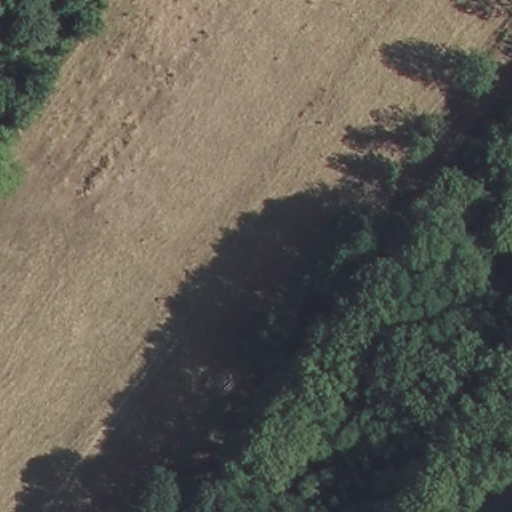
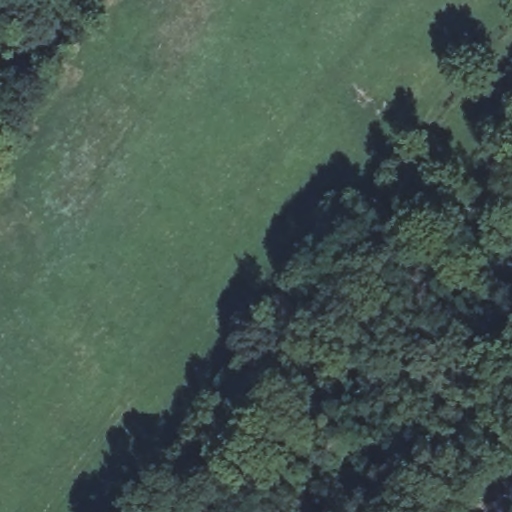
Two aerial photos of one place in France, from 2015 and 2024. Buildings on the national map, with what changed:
[]

